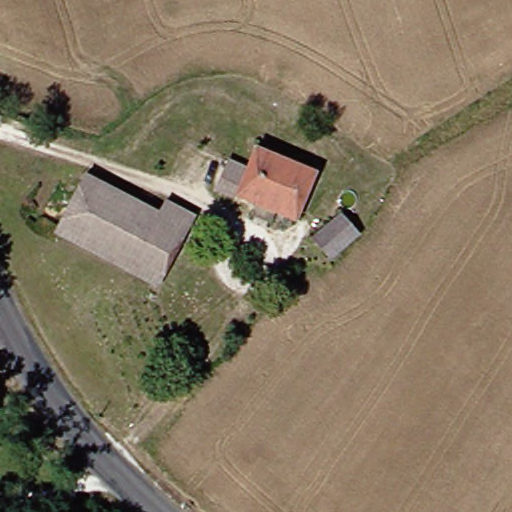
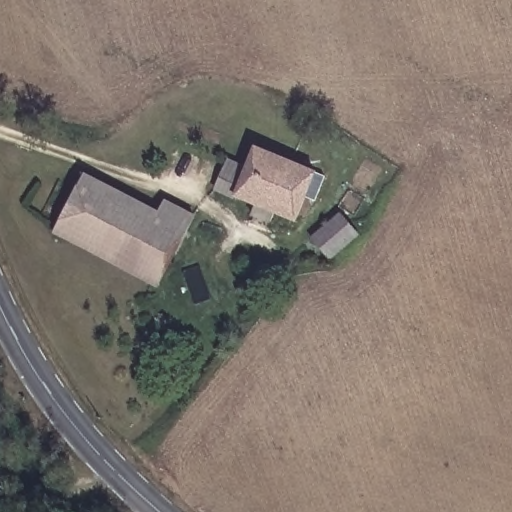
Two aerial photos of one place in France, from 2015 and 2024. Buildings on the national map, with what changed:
unchanged [(256,151),(314,178),(293,225),(236,197),(256,151)]
unchanged [(164,219),(131,270),(60,228),(94,174),(139,202),(144,196),(173,202),(201,220),(192,234),(164,219)]
unchanged [(341,215),(358,238),(327,263),(309,239),(341,215)]
unchanged [(161,288),(131,270),(164,219),(192,234),(161,288)]

